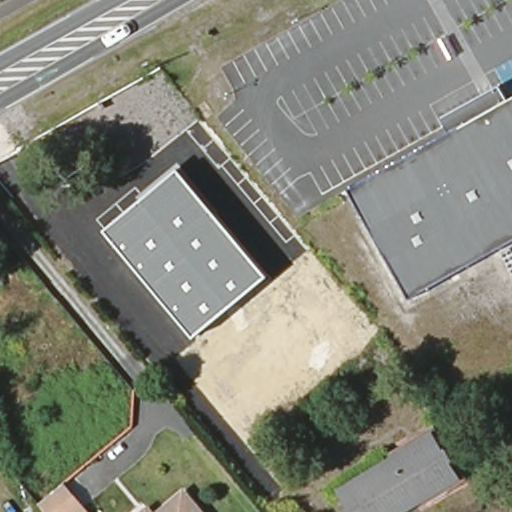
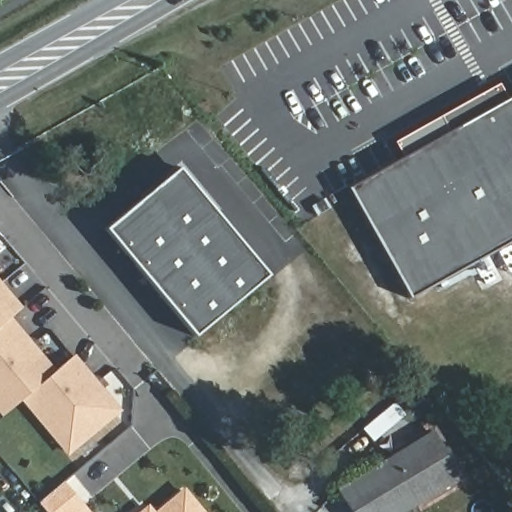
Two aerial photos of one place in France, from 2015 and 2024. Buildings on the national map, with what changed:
unchanged [(391,143),(495,87),(503,102),(512,97),(512,240),(408,298),(348,188),(400,159),(391,143)]
unchanged [(194,337),(104,230),(179,170),(268,276),(194,337)]
new [(18,308),(0,321),(0,285),(18,308)]
new [(9,320),(55,373),(1,418),(0,416),(0,327),(9,320)]
new [(117,413),(66,455),(21,401),(72,359),(117,413)]
demolished [(3,381),(26,406),(9,420),(0,409),(0,383),(3,381)]
unchanged [(391,453),(436,426),(465,476),(406,512),(354,512),(341,489),(393,457),(391,453)]
unchanged [(56,480),(82,510),(83,512),(44,512),(33,499),(56,480)]
unchanged [(203,512),(158,512),(185,490),(203,512)]
unchanged [(154,512),(142,512),(149,506),(154,512)]

